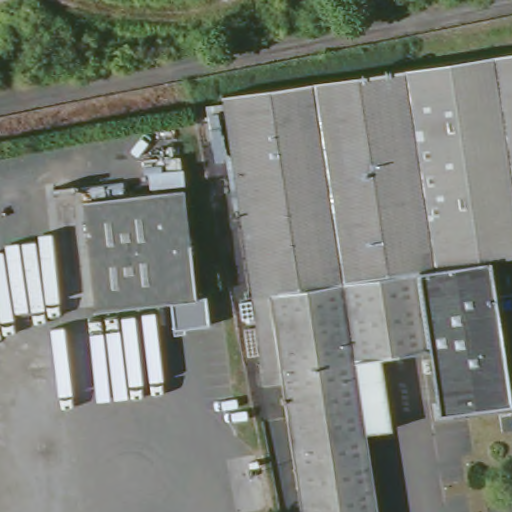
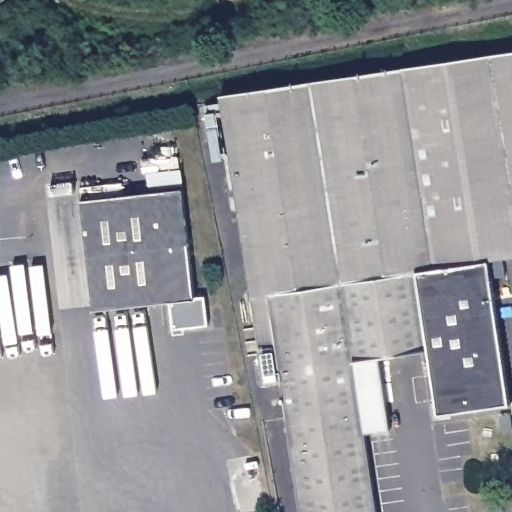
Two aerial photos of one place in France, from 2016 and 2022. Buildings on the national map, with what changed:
unchanged [(412,267),(429,263),(397,66),(512,49),(512,252),(485,256),(506,398),(435,409),(425,344),(412,267)]
unchanged [(429,263),(412,267),(425,344),(399,349),(351,357),(362,428),(375,512),(298,512),(277,378),(262,380),(219,94),(397,66),(429,263)]
unchanged [(80,197),(183,189),(193,298),(91,308),(80,197)]
unchanged [(410,421),(362,428),(351,357),(399,349),(410,421)]

